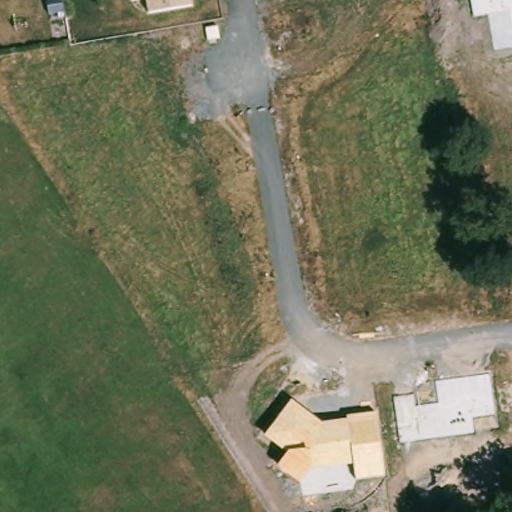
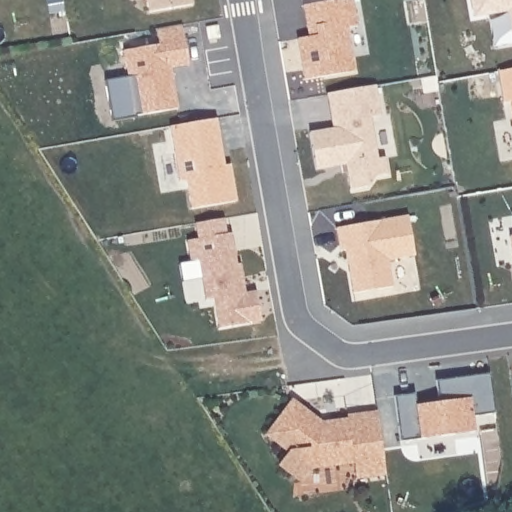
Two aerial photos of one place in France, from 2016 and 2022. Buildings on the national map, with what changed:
unchanged [(131,1),(131,0),(140,0),(131,1)]
unchanged [(192,5),(146,12),(144,0),(192,0),(192,5)]
new [(308,30),(305,7),(348,0),(354,0),(359,28),(349,30),(356,74),(306,82),(299,41),(310,39),(308,30)]
unchanged [(512,30),(509,10),(473,16),(471,0),(512,0),(512,30)]
new [(155,114),(113,121),(101,55),(137,50),(134,35),(160,30),(167,70),(148,73),(149,79),(152,96),(155,114)]
new [(505,105),(500,73),(512,71),(512,104),(505,105)]
new [(343,162),(318,167),(311,130),(335,125),(334,121),(329,95),(378,87),(384,117),(373,119),(379,156),(387,155),(390,172),(377,174),(369,185),(352,188),(349,169),(344,170),(343,162)]
new [(225,154),(227,167),(233,166),(239,203),(195,211),(190,183),(183,184),(173,129),(219,120),(225,154)]
new [(410,217),(417,257),(391,261),(395,288),(356,295),(348,251),(343,252),(339,230),(410,217)]
new [(202,225),(230,220),(232,235),(237,235),(241,266),(245,265),(248,287),(244,288),(246,295),(260,293),(264,324),(222,330),(217,300),(209,301),(204,261),(196,262),(193,241),(204,240),(202,225)]
new [(512,238),(512,241),(511,238),(512,238)]
unchanged [(393,397),(413,395),(414,407),(439,403),(435,381),(490,372),(496,415),(472,418),(474,433),(400,442),(393,397)]
unchanged [(354,480),(354,463),(309,469),(299,483),(278,465),(287,453),(264,436),(291,400),(322,423),(348,419),(347,416),(376,412),(383,476),(354,480)]

